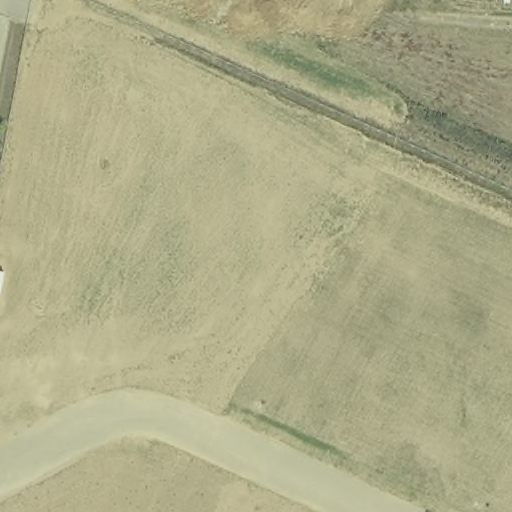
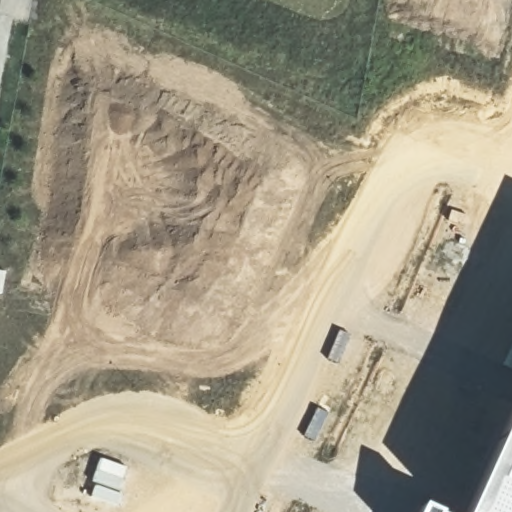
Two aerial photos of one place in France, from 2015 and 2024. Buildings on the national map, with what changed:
new [(476,512),(512,427),(512,512),(476,512)]
new [(465,512),(439,512),(444,501),(465,512)]

